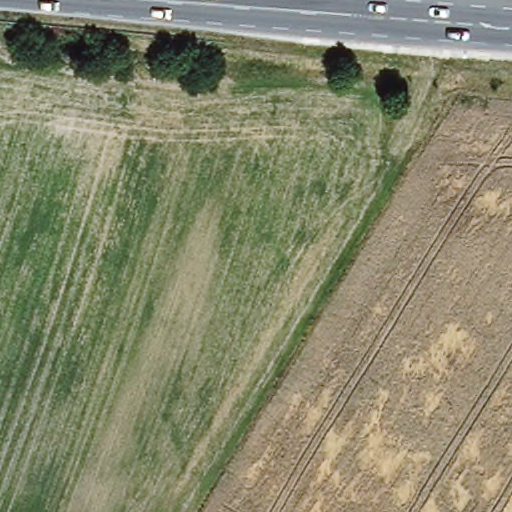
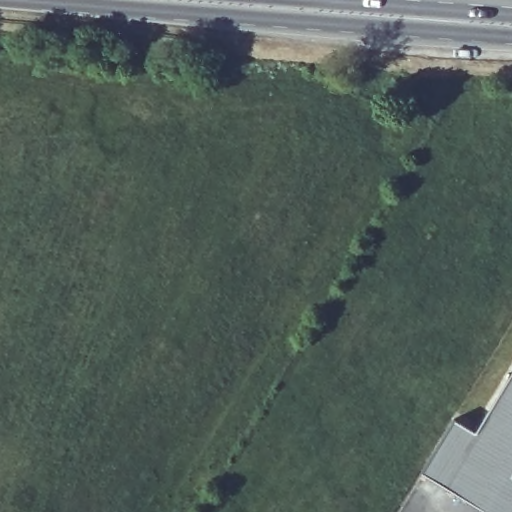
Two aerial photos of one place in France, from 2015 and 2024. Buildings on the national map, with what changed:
new [(473,440),(512,375),(512,512),(475,512),(422,479),(456,418),(473,440)]

